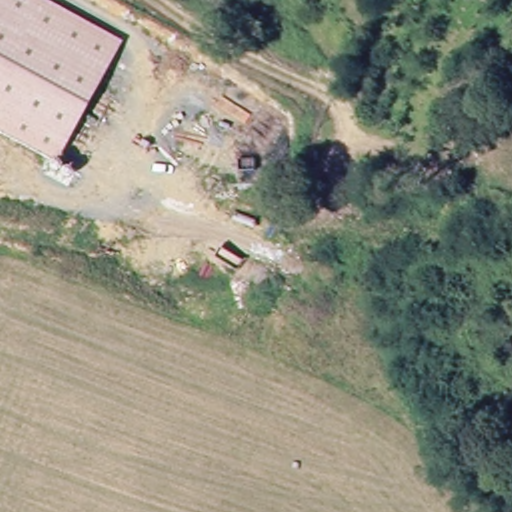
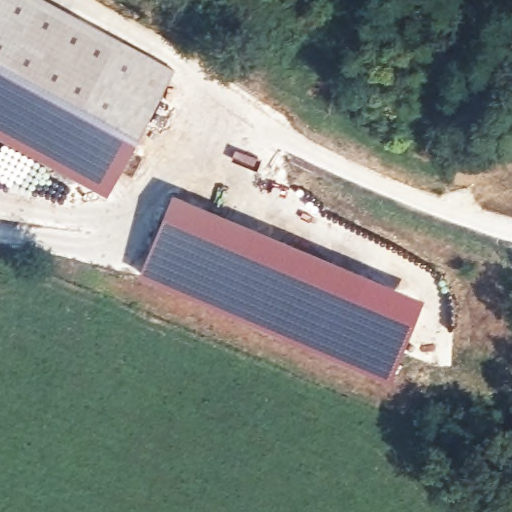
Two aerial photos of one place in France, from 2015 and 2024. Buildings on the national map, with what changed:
unchanged [(122,42),(59,165),(72,172),(67,190),(37,177),(45,162),(0,136),(0,0),(45,0),(122,42)]
new [(175,70),(107,194),(71,176),(72,172),(59,165),(122,42),(175,70)]
new [(260,149),(248,186),(203,170),(216,132),(260,149)]
new [(173,190),(362,270),(423,298),(386,376),(286,329),(139,270),(173,190)]

